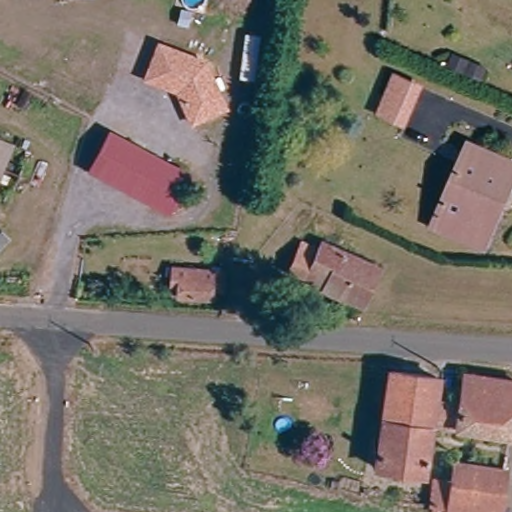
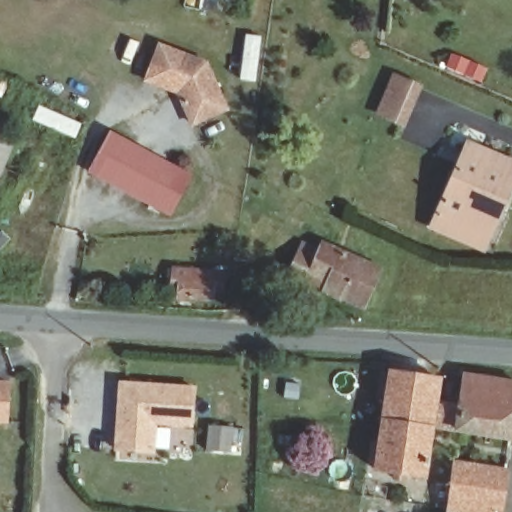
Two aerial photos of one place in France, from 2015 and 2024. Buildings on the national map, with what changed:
unchanged [(179,94),(146,85),(157,49),(205,62),(228,107),(195,125),(179,94)]
unchanged [(415,81),(403,121),(380,115),(389,75),(415,81)]
unchanged [(188,171),(166,209),(92,170),(112,131),(188,171)]
unchanged [(15,140),(0,177),(0,135),(15,140)]
unchanged [(442,221),(461,148),(512,161),(512,165),(508,176),(499,210),(492,235),(489,245),(439,232),(442,221)]
unchanged [(334,260),(338,253),(382,271),(368,303),(301,273),(311,249),(334,260)]
unchanged [(169,287),(168,267),(218,264),(219,283),(215,284),(215,300),(175,303),(174,286),(169,287)]
unchanged [(437,406),(462,410),(468,375),(512,378),(512,436),(434,423),(433,427),(386,418),(394,370),(443,373),(437,406)]
new [(195,386),(194,427),(157,425),(155,454),(113,451),(117,380),(195,386)]
new [(12,382),(9,426),(0,426),(0,381),(12,382)]
unchanged [(386,418),(433,427),(425,477),(378,468),(386,418)]
unchanged [(448,510),(433,506),(437,485),(453,488),(457,463),(512,473),(512,487),(507,512),(448,512),(448,510)]

